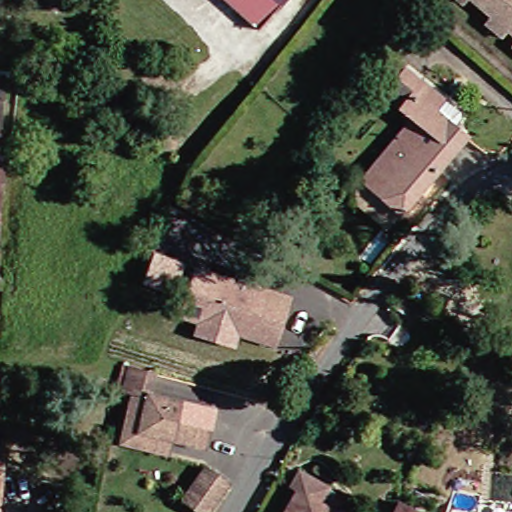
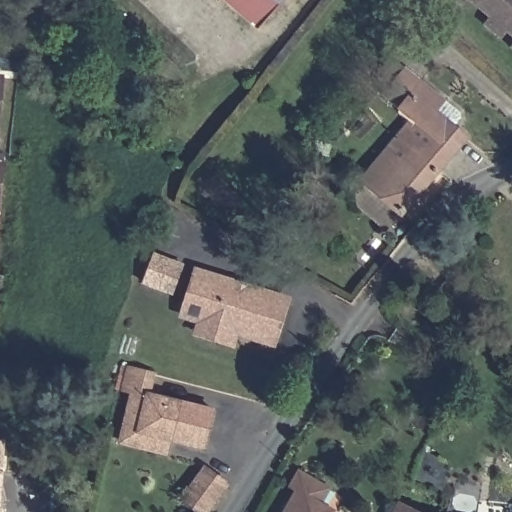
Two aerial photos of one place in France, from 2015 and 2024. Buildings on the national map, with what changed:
unchanged [(236,0),(285,0),(264,24),(236,0)]
unchanged [(453,0),(461,0),(458,4),(453,0)]
unchanged [(503,29),(497,36),(483,25),(489,17),(468,0),(512,0),(512,36),(503,29)]
unchanged [(510,47),(512,45),(512,49),(510,47)]
unchanged [(399,101),(420,75),(432,84),(442,92),(434,103),(464,126),(401,204),(360,172),(411,110),(399,101)]
unchanged [(0,154),(5,154),(1,241),(0,241),(0,154)]
unchanged [(401,204),(388,219),(348,188),(360,172),(401,204)]
unchanged [(5,290),(0,290),(0,246),(4,246),(3,268),(6,268),(9,269),(5,290)]
unchanged [(178,285),(151,275),(162,247),(189,257),(178,285)]
unchanged [(231,343),(197,331),(201,320),(183,314),(186,306),(198,271),(285,300),(270,343),(235,331),(235,333),(231,343)]
unchanged [(0,343),(0,313),(1,313),(0,343)]
unchanged [(157,373),(152,393),(216,408),(207,446),(174,437),(142,429),(146,411),(132,407),(137,390),(128,388),(133,368),(157,373)]
unchanged [(10,468),(8,490),(7,512),(0,512),(0,438),(12,438),(10,468)]
unchanged [(212,512),(204,512),(187,499),(210,467),(232,484),(212,512)]
unchanged [(299,488),(294,484),(302,468),(317,477),(331,485),(323,499),(338,508),(336,512),(286,512),(299,488)]
unchanged [(402,499),(431,512),(397,512),(402,499)]

